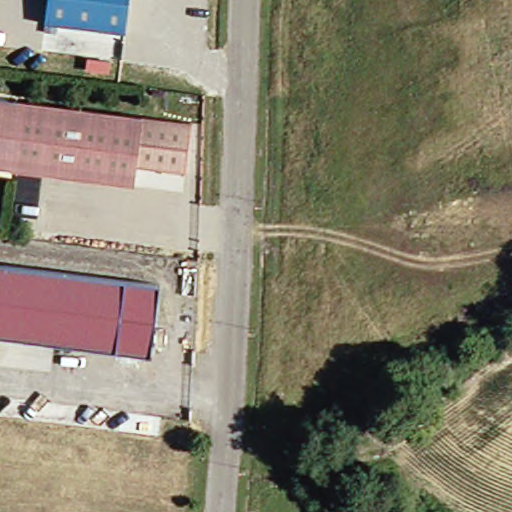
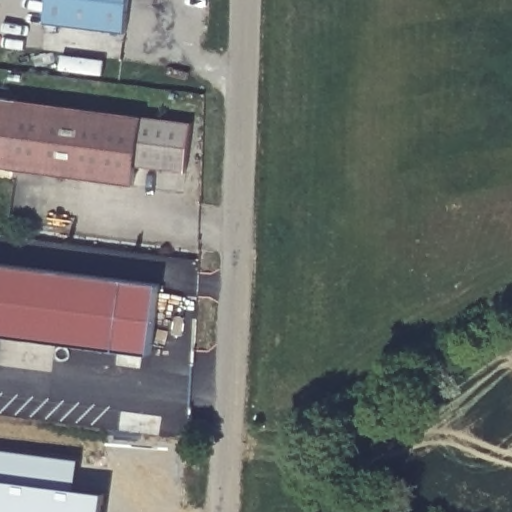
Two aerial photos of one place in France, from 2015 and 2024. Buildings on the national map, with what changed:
unchanged [(130,0),(126,33),(46,23),(49,0),(130,0)]
unchanged [(131,166),(128,185),(0,169),(0,99),(137,116),(131,166)]
unchanged [(187,123),(181,173),(131,166),(137,116),(187,123)]
unchanged [(0,336),(0,265),(121,280),(112,350),(0,336)]
unchanged [(121,280),(155,284),(146,354),(112,350),(121,280)]
new [(107,493),(105,512),(0,512),(0,448),(82,459),(78,489),(107,493)]

